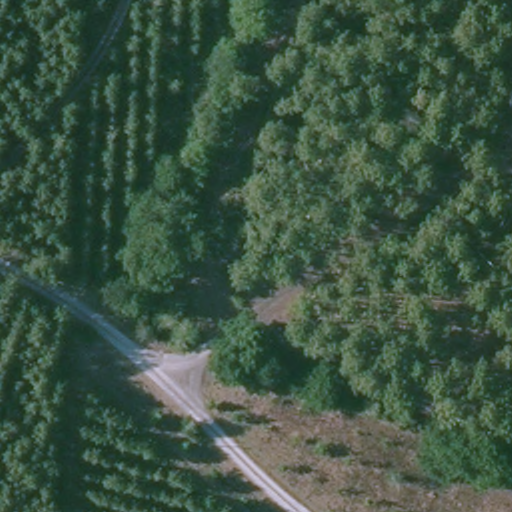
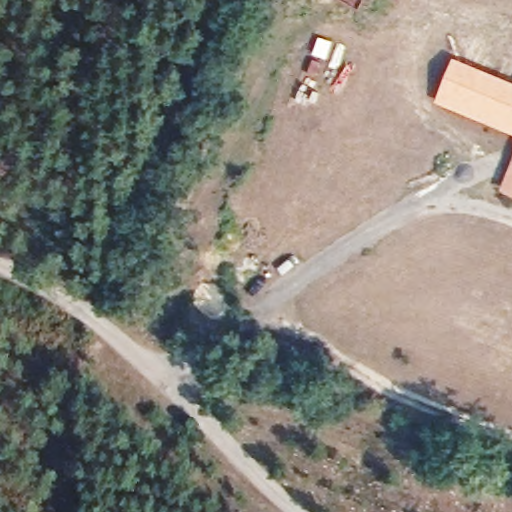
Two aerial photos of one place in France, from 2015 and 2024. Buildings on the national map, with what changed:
new [(454,57),(512,81),(512,132),(437,102),(454,57)]
new [(502,190),(512,164),(512,195),(502,190)]
demolished [(436,339),(450,310),(492,326),(480,358),(436,339)]

